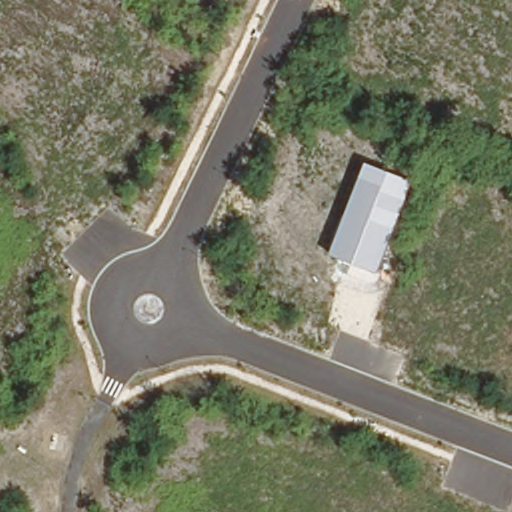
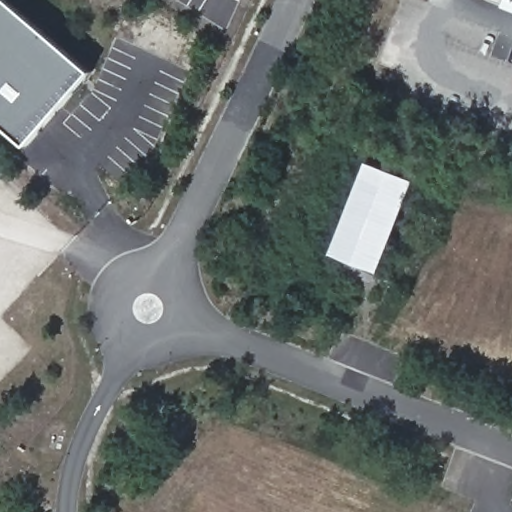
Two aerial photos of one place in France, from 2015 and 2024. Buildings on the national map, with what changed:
new [(22,142),(0,123),(0,0),(4,0),(87,70),(22,142)]
new [(504,0),(512,0),(512,3),(504,0)]
unchanged [(414,181),(378,272),(332,254),(368,163),(414,181)]

